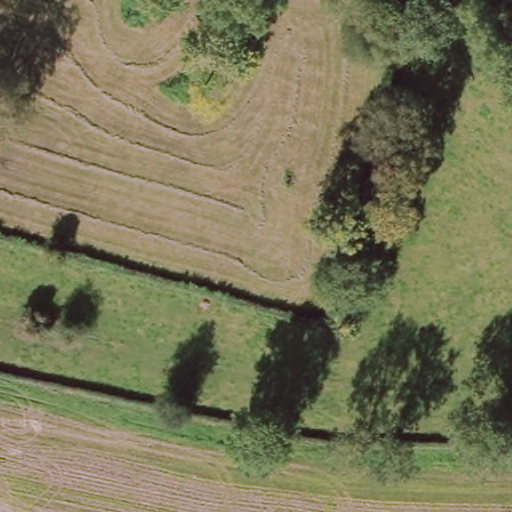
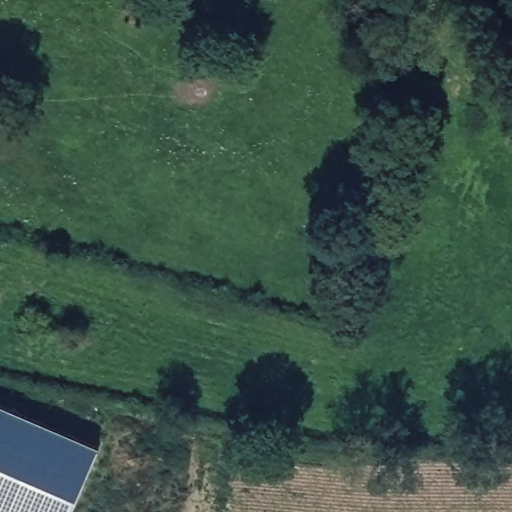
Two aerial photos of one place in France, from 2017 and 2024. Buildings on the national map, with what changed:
new [(98,447),(70,512),(0,512),(0,403),(98,447)]

